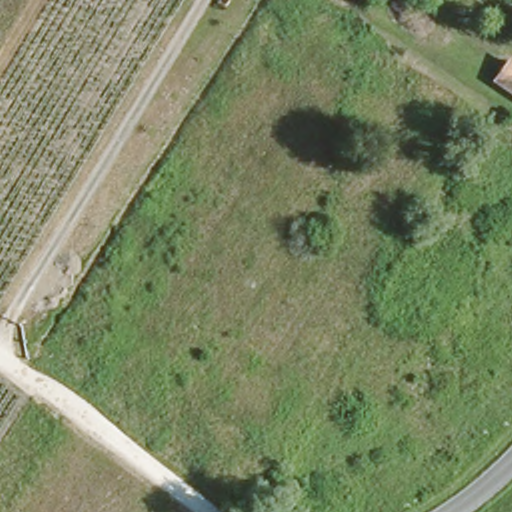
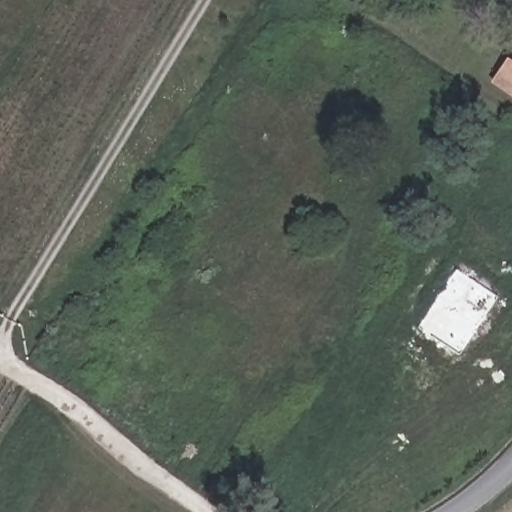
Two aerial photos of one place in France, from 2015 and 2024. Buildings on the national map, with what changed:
unchanged [(507,56),(512,60),(512,89),(494,76),(507,56)]

